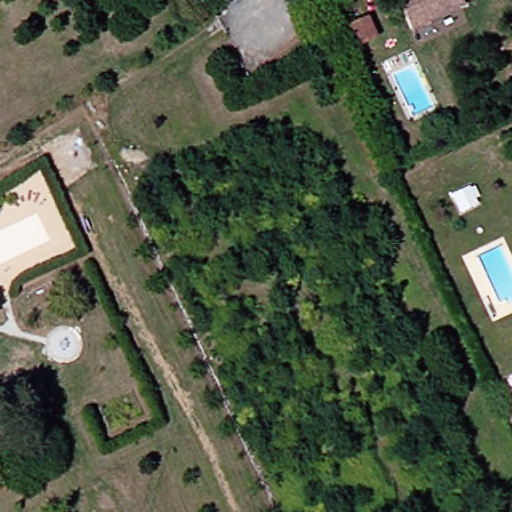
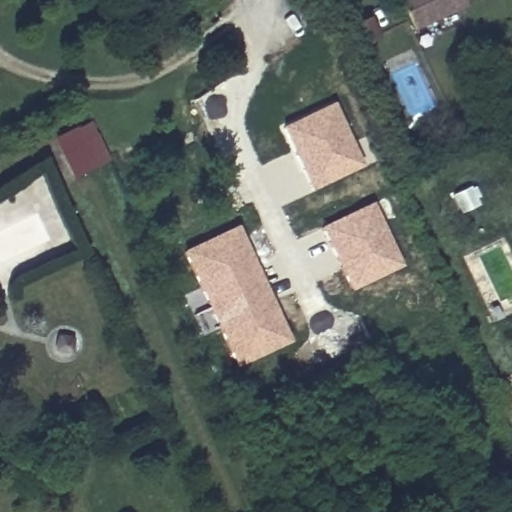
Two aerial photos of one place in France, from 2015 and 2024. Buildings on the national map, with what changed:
unchanged [(471,5),(419,32),(404,0),(471,0),(468,1),(471,5)]
unchanged [(369,18),(377,36),(360,44),(352,26),(369,18)]
new [(280,126),(333,102),(363,166),(311,190),(280,126)]
new [(56,136),(90,121),(109,161),(76,178),(56,136)]
new [(320,226),(372,202),(402,265),(350,290),(320,226)]
new [(237,225),(291,341),(236,366),(181,250),(237,225)]

